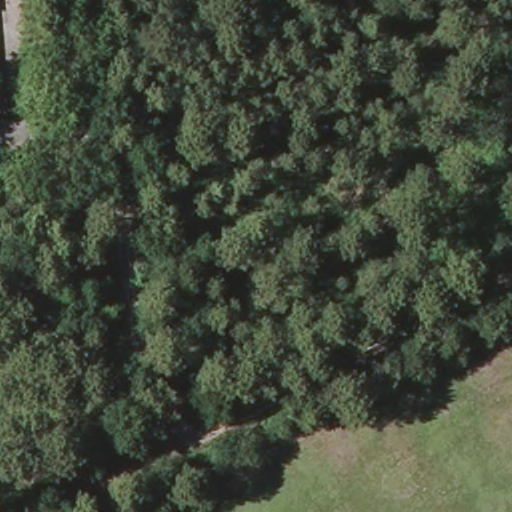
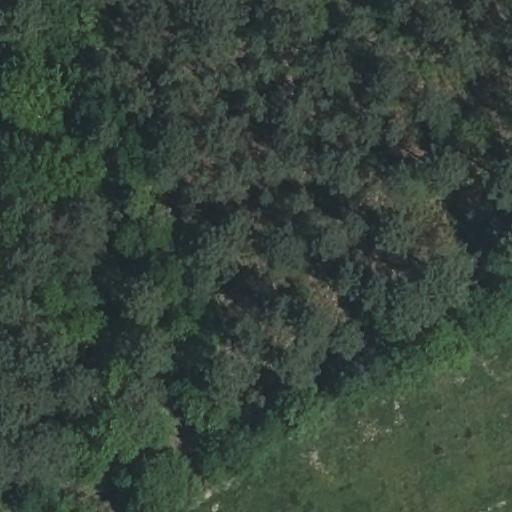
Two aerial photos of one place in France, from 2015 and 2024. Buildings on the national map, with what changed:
unchanged [(41,170),(0,171),(0,124),(37,121),(41,170)]

